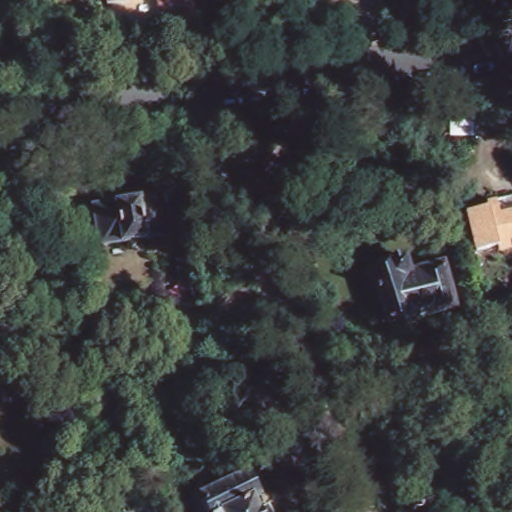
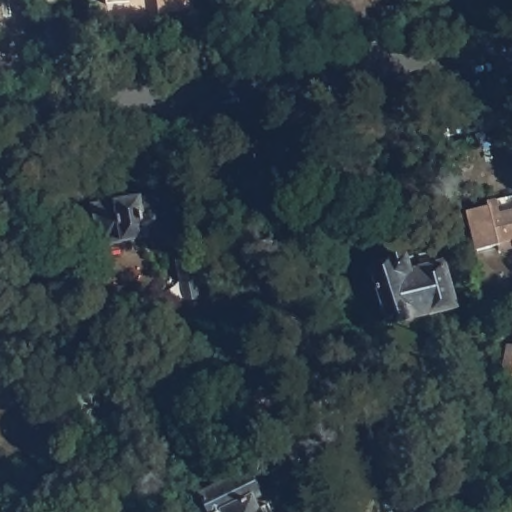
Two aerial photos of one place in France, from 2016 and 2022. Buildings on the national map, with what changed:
unchanged [(105,3),(105,0),(127,0),(105,3)]
unchanged [(180,15),(160,18),(158,0),(178,0),(180,15)]
unchanged [(183,232),(112,243),(106,203),(177,192),(183,232)]
unchanged [(497,251),(473,258),(464,218),(487,212),(490,223),(512,217),(512,244),(496,248),(497,251)]
unchanged [(450,308),(384,325),(369,269),(388,264),(387,260),(402,256),(406,272),(439,263),(450,308)]
unchanged [(203,299),(186,303),(177,265),(194,261),(203,299)]
unchanged [(506,343),(512,344),(512,376),(502,375),(506,343)]
unchanged [(201,512),(196,502),(217,493),(210,479),(234,468),(240,481),(243,479),(254,505),(248,508),(250,512),(201,512)]
unchanged [(464,512),(438,512),(456,505),(464,512)]

